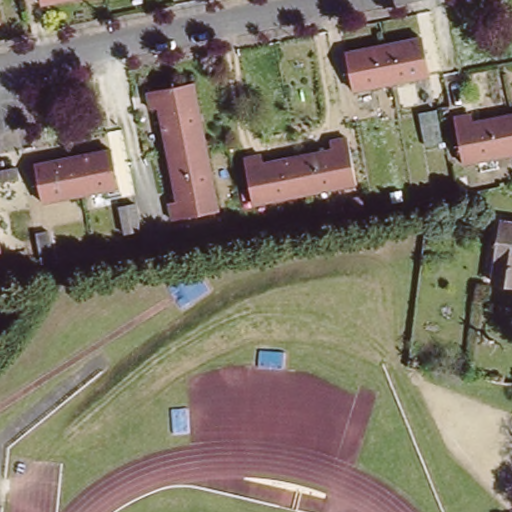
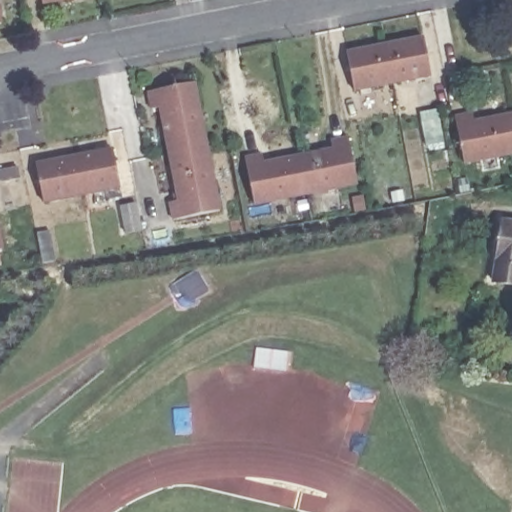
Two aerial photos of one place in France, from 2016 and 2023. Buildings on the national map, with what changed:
unchanged [(52,0),(39,2),(39,0),(52,0)]
unchanged [(376,45),(414,38),(422,76),(384,84),(376,45)]
unchanged [(339,53),(376,45),(384,84),(345,91),(339,53)]
unchanged [(148,109),(146,91),(190,82),(203,147),(166,154),(156,106),(148,109)]
unchanged [(451,117),(468,114),(471,124),(504,117),(511,155),(460,164),(451,117)]
unchanged [(512,116),(512,154),(511,155),(504,117),(512,116)]
unchanged [(290,156),(323,150),(322,141),(339,137),(349,184),(297,193),(290,156)]
unchanged [(203,147),(214,210),(170,220),(166,200),(174,199),(166,154),(203,147)]
unchanged [(70,155),(108,149),(115,185),(78,193),(70,155)]
unchanged [(236,157),(253,154),(256,163),(290,156),(297,193),(246,203),(236,157)]
unchanged [(32,163),(70,155),(78,193),(39,200),(32,163)]
unchanged [(16,176),(0,179),(0,170),(14,167),(16,176)]
unchanged [(512,278),(493,275),(504,215),(512,217),(512,278)]

